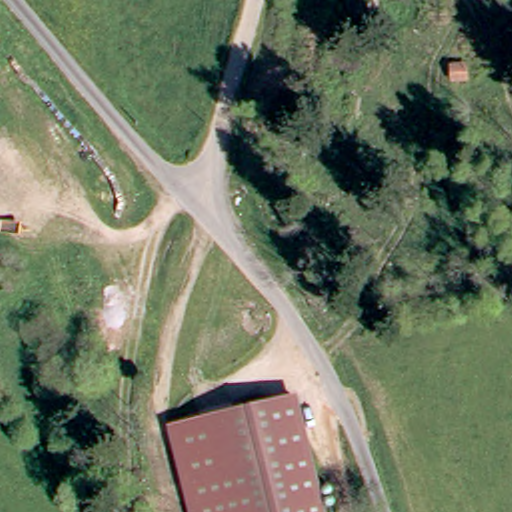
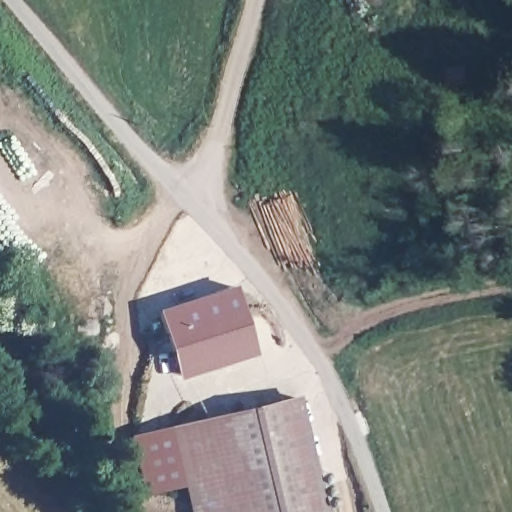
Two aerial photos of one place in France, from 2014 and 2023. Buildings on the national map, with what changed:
new [(471,58),(471,79),(449,79),(447,60),(471,58)]
new [(177,379),(154,310),(234,284),(254,353),(177,379)]
unchanged [(327,512),(187,512),(167,428),(299,395),(327,512)]
new [(142,494),(130,436),(167,428),(180,485),(142,494)]

